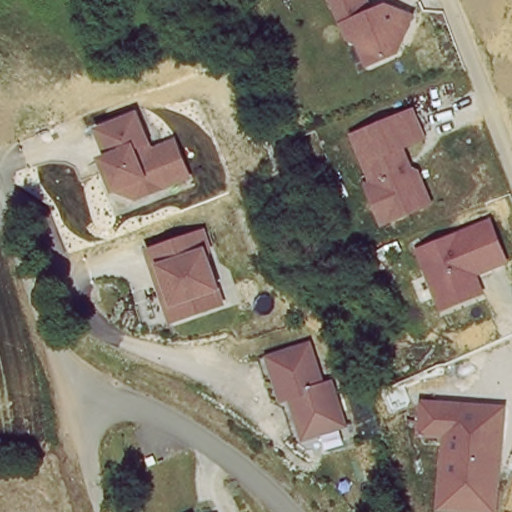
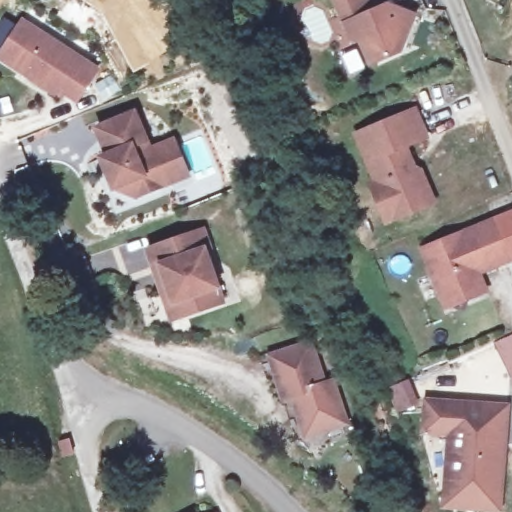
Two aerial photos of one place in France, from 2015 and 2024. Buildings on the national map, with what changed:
unchanged [(389,7),(415,20),(401,56),(367,69),(360,47),(350,49),(341,29),(343,25),(332,0),(369,0),(374,14),(389,7)]
new [(0,50),(1,49),(0,48),(0,34),(8,22),(16,27),(21,17),(100,67),(77,103),(64,96),(61,100),(0,61),(0,50)]
unchanged [(427,141),(406,151),(413,176),(420,174),(432,207),(385,230),(368,189),(372,186),(354,140),(416,114),(427,141)]
unchanged [(151,152),(173,143),(190,182),(137,202),(111,195),(98,162),(105,157),(92,132),(134,117),(151,152)]
unchanged [(509,267),(482,280),(487,298),(443,313),(422,252),(492,227),(509,267)]
unchanged [(210,255),(206,254),(225,308),(175,325),(148,252),(204,230),(210,255)]
unchanged [(325,386),(336,382),(353,430),(305,446),(292,406),(282,408),(268,359),(311,350),(325,386)]
unchanged [(509,402),(503,512),(495,512),(444,508),(447,437),(423,437),(423,397),(509,402)]

